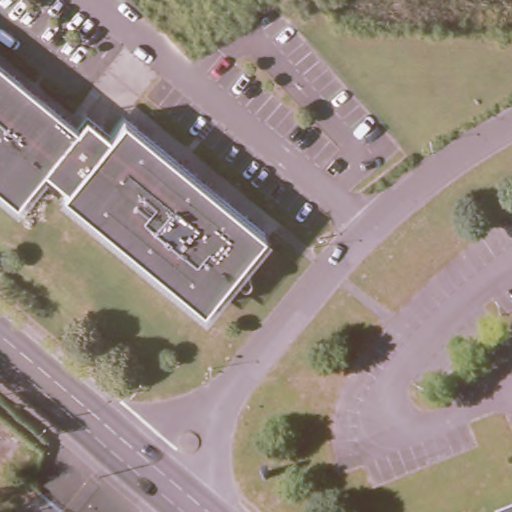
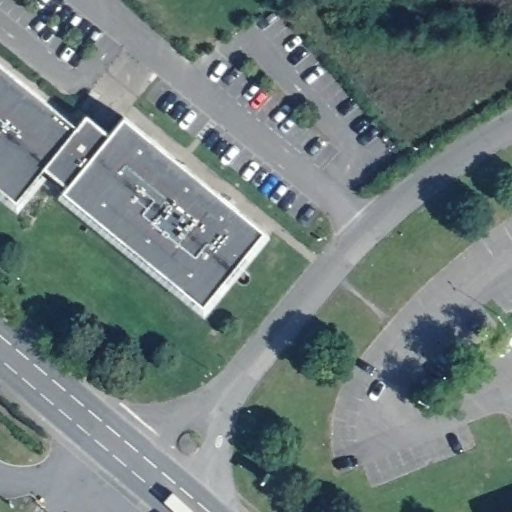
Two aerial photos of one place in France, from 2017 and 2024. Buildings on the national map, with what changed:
unchanged [(87,118),(110,136),(124,120),(265,234),(203,309),(63,195),(67,190),(45,172),(17,206),(0,192),(0,67),(77,130),(87,118)]
unchanged [(512,507),(512,512),(500,512),(512,507)]

